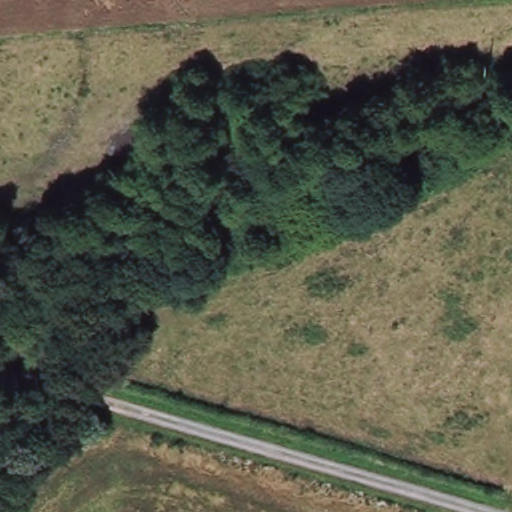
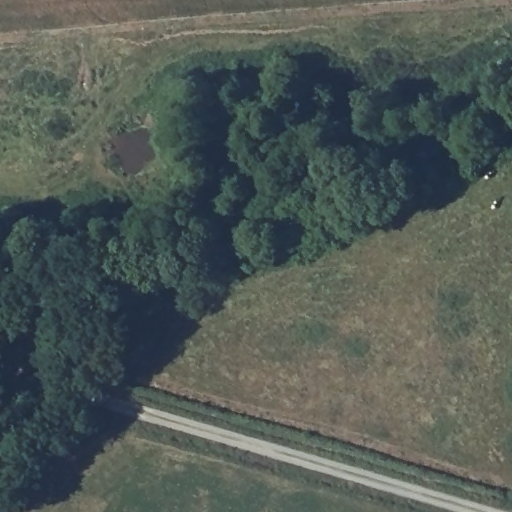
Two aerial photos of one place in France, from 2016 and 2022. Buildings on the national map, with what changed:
[]

